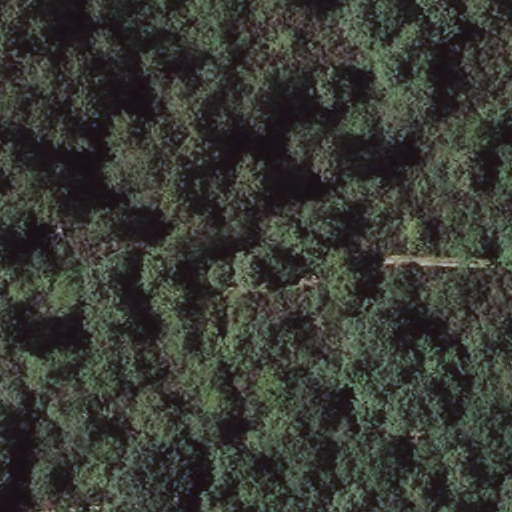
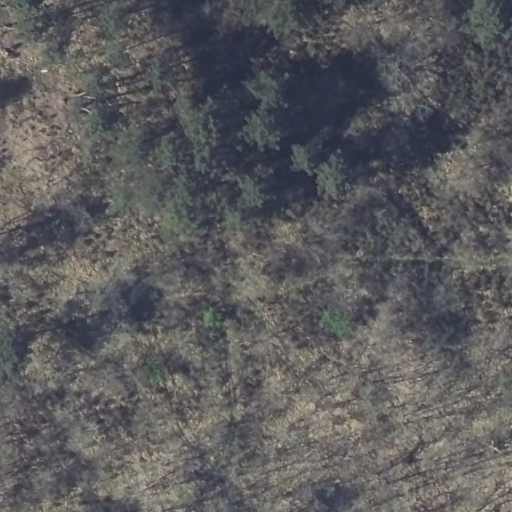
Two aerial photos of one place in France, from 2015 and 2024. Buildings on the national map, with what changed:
[]

